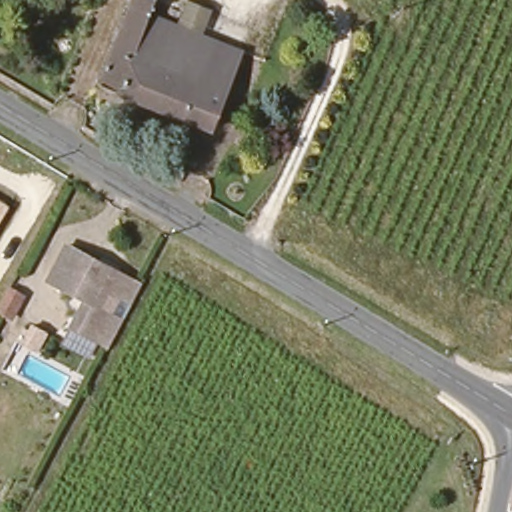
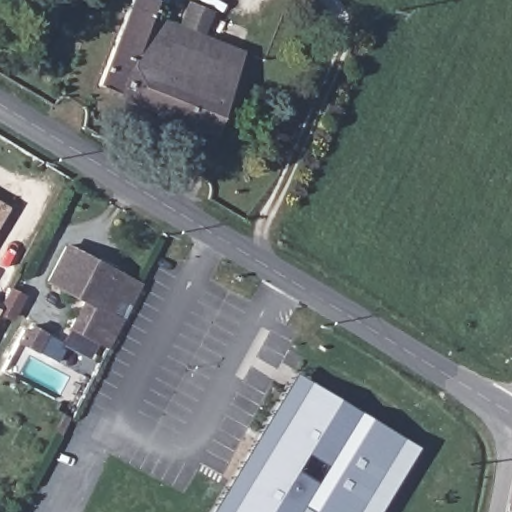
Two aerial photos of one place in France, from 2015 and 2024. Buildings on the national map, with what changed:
unchanged [(104,89),(139,1),(160,9),(157,18),(163,20),(160,31),(215,51),(189,121),(104,89)]
demolished [(303,64),(309,50),(335,59),(328,74),(303,64)]
unchanged [(215,51),(241,61),(216,131),(189,121),(215,51)]
unchanged [(0,202),(10,208),(0,224),(0,202)]
unchanged [(108,346),(72,324),(85,298),(50,279),(69,243),(140,284),(108,346)]
unchanged [(30,298),(16,325),(2,318),(16,289),(30,298)]
new [(99,340),(89,359),(65,346),(56,363),(15,340),(22,328),(26,329),(28,330),(32,324),(61,339),(72,324),(99,340)]
new [(316,512),(312,510),(310,512),(211,512),(296,372),(311,382),(359,411),(402,437),(418,446),(378,512),(316,512)]

